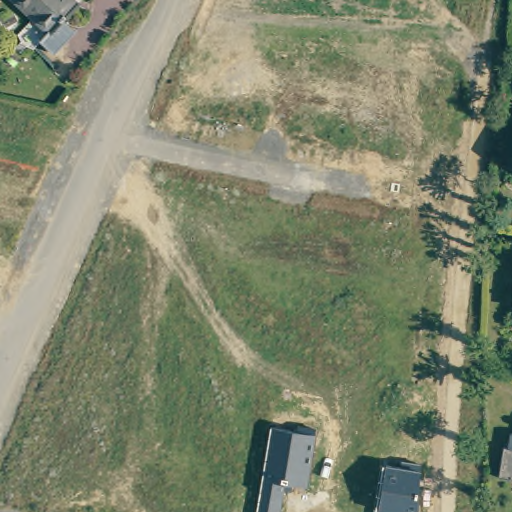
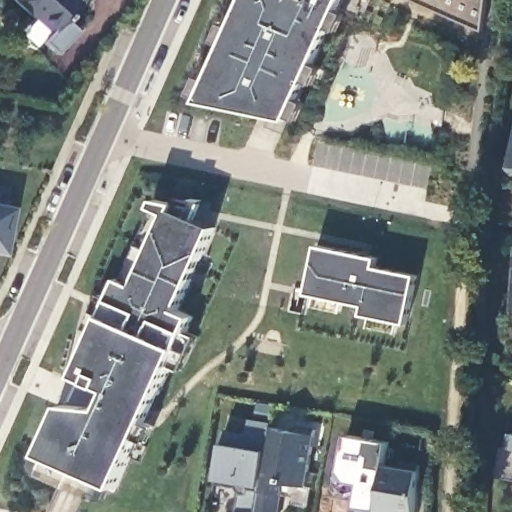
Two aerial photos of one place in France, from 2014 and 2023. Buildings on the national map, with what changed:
unchanged [(52,32),(18,0),(77,0),(80,3),(52,32)]
new [(200,102),(246,0),(343,0),(288,119),(200,102)]
new [(414,0),(487,0),(483,31),(414,0)]
new [(156,198),(176,203),(174,209),(216,228),(178,309),(194,316),(186,332),(197,336),(181,371),(171,367),(147,422),(159,427),(150,442),(140,438),(118,488),(112,486),(105,499),(45,473),(51,458),(44,454),(65,405),(102,408),(111,389),(79,374),(96,332),(88,328),(103,295),(111,299),(121,278),(130,282),(161,210),(152,207),(156,198)]
new [(2,256),(0,256),(0,206),(12,208),(2,256)]
new [(318,240),(381,254),(379,263),(423,273),(411,329),(397,327),(395,334),(369,329),(371,321),(358,319),(359,310),(341,308),(341,312),(315,308),(316,295),(307,294),(317,247),(318,240)]
unchanged [(511,302),(512,289),(512,302),(511,302)]
new [(215,485),(225,431),(247,435),(250,420),(271,424),(257,512),(238,512),(240,494),(237,489),(215,485)]
unchanged [(272,430),(314,436),(305,489),(285,486),(280,512),(258,512),(272,430)]
unchanged [(498,474),(503,443),(509,444),(511,430),(512,431),(512,477),(498,474)]
new [(347,436),(390,443),(378,512),(360,512),(360,509),(357,509),(360,486),(348,483),(340,473),(347,436)]
unchanged [(386,464),(421,471),(416,512),(378,512),(386,464)]

